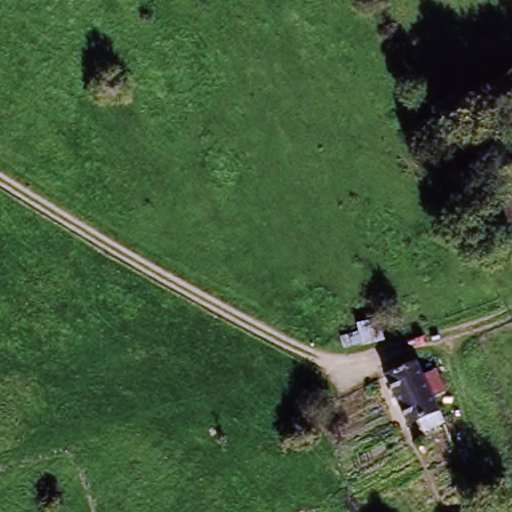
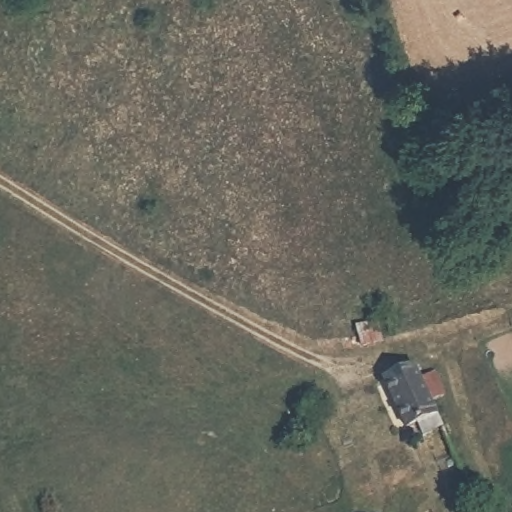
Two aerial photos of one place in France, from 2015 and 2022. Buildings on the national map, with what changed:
unchanged [(381,323),(385,346),(361,353),(357,329),(381,323)]
unchanged [(382,384),(415,369),(442,435),(426,442),(420,428),(404,434),(382,384)]

